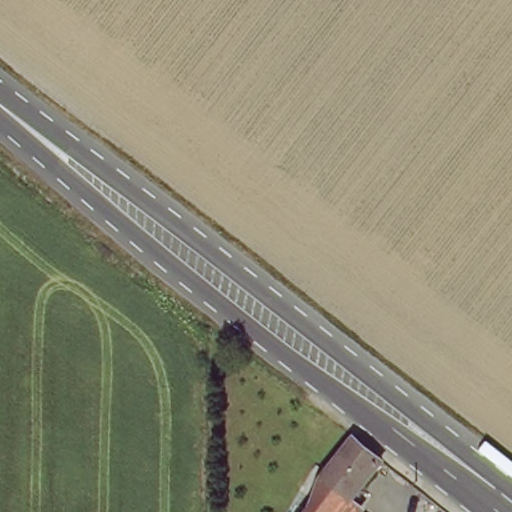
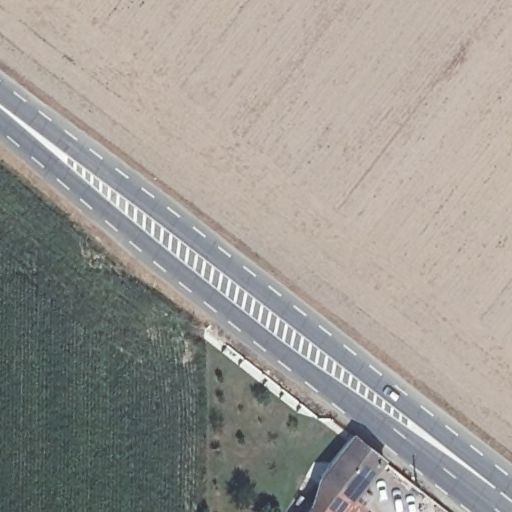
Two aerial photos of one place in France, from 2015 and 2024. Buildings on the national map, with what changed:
unchanged [(381,457),(338,512),(307,512),(314,502),(323,479),(353,434),(381,457)]

